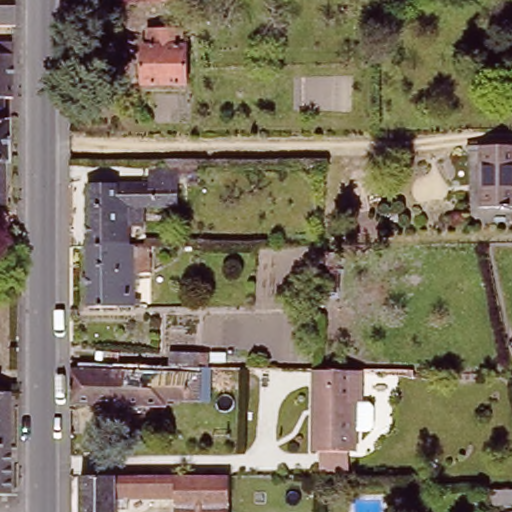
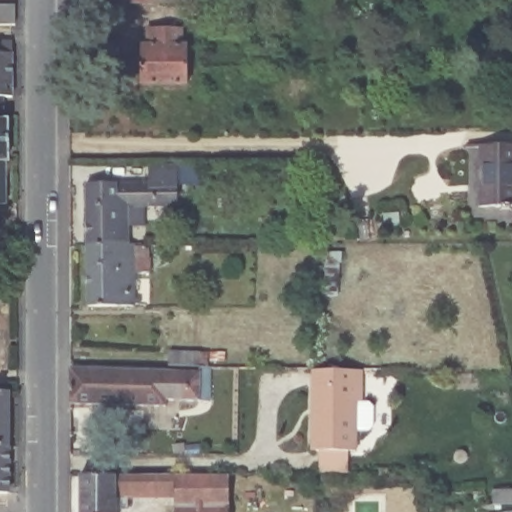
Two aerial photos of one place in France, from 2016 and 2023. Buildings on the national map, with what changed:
unchanged [(171,0),(108,1),(108,0),(171,0)]
unchanged [(0,3),(14,3),(14,25),(10,25),(0,25),(0,3)]
unchanged [(151,36),(184,35),(185,51),(191,51),(191,91),(144,91),(144,51),(151,51),(151,36)]
unchanged [(0,96),(0,50),(3,50),(3,37),(15,38),(18,96),(0,96)]
unchanged [(13,164),(14,164),(12,207),(0,207),(0,125),(15,125),(13,164)]
unchanged [(484,212),(484,174),(484,150),(512,150),(512,212),(489,212),(484,212)]
unchanged [(81,252),(81,190),(141,190),(141,171),(171,171),(171,212),(121,212),(121,252),(81,252)]
unchanged [(128,252),(128,312),(81,312),(81,252),(121,252),(128,252)]
unchanged [(213,395),(164,395),(164,401),(69,400),(69,365),(193,367),(193,360),(214,360),(213,395)]
unchanged [(316,485),(316,452),(311,452),(311,372),(360,372),(361,405),(352,405),(352,452),(344,452),(344,484),(316,485)]
unchanged [(9,494),(0,494),(0,385),(10,385),(9,494)]
unchanged [(116,503),(116,512),(78,512),(78,480),(228,480),(228,512),(172,512),(172,502),(116,503)]
unchanged [(501,512),(512,510),(512,512),(501,512)]

